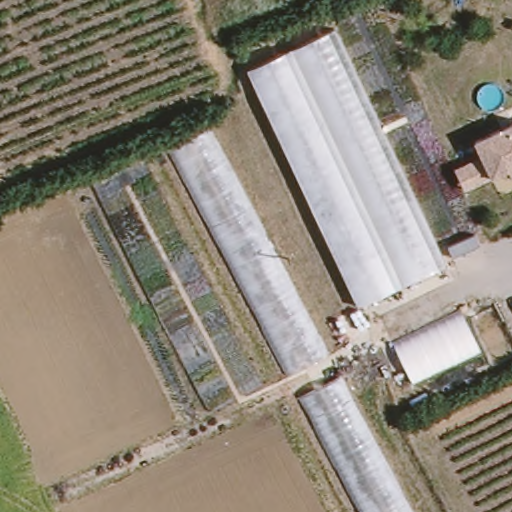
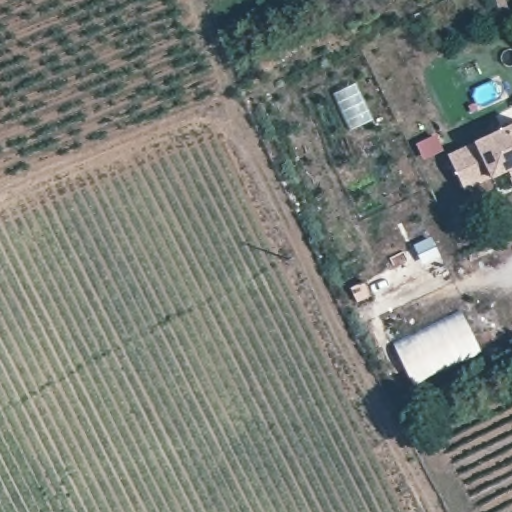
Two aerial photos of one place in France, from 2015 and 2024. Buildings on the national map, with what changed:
demolished [(242,73),(332,30),(442,268),(353,308),(242,73)]
unchanged [(476,160),(468,143),(512,124),(512,166),(489,176),(460,190),(451,172),(476,160)]
demolished [(166,151),(209,130),(324,358),(284,376),(166,151)]
unchanged [(392,351),(459,318),(478,355),(410,388),(392,351)]
demolished [(405,512),(355,512),(297,402),(336,381),(405,512)]

